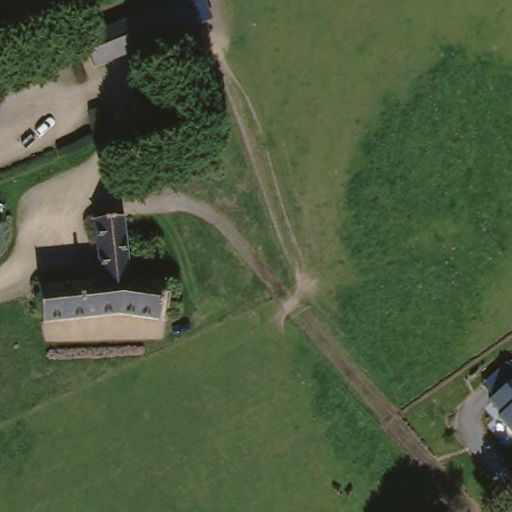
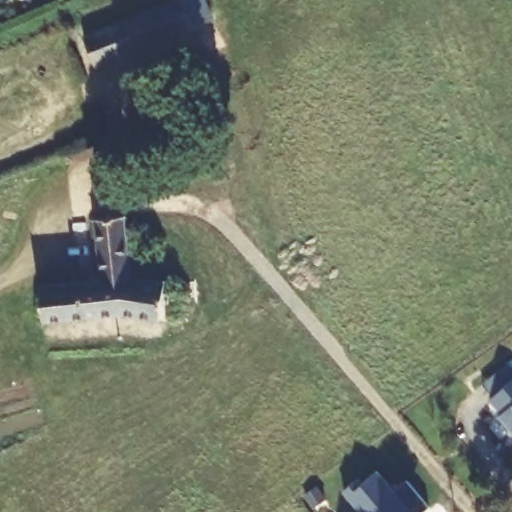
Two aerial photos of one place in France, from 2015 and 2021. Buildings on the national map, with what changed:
unchanged [(81,38),(176,0),(199,0),(211,25),(93,73),(81,38)]
unchanged [(95,279),(91,218),(122,214),(126,274),(164,283),(156,325),(112,319),(40,325),(37,283),(95,279)]
unchanged [(504,419),(507,416),(495,402),(498,399),(488,388),(512,365),(512,429),(504,419)]
new [(326,497),(349,477),(354,483),(374,466),(390,485),(401,477),(424,506),(417,512),(337,512),(326,497)]

